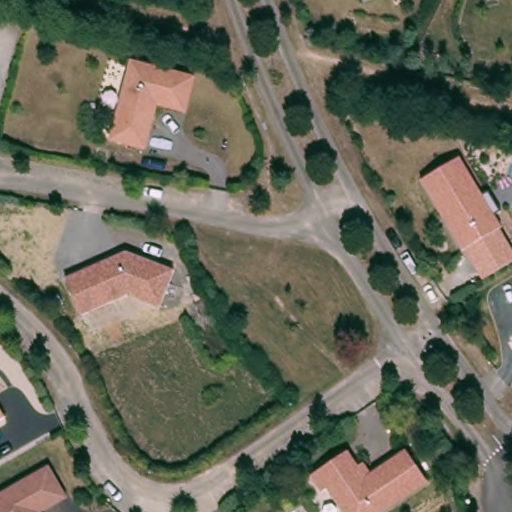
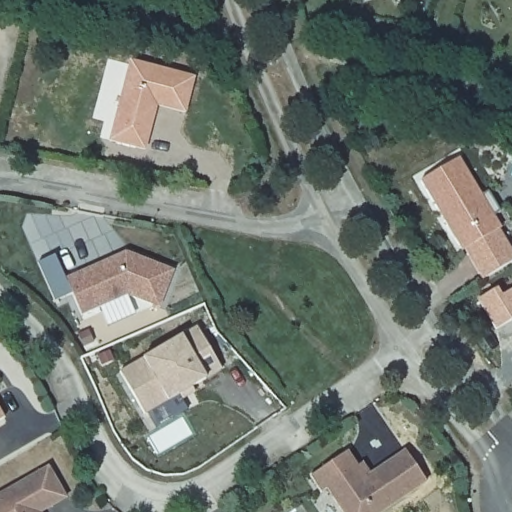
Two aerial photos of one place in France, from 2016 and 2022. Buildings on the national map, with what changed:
unchanged [(149,142),(114,134),(135,56),(197,72),(189,106),(161,98),(157,111),(155,120),(149,142)]
unchanged [(504,225),(466,247),(424,177),(462,154),(504,225)]
unchanged [(131,250),(178,268),(164,306),(132,293),(86,313),(70,277),(131,250)]
new [(181,397),(178,392),(143,412),(118,370),(196,325),(221,367),(190,385),(194,390),(181,397)]
unchanged [(0,401),(9,416),(0,420),(0,401)]
unchanged [(431,480),(382,512),(348,512),(331,487),(325,491),(314,474),(351,450),(361,465),(367,461),(375,472),(410,448),(431,480)]
unchanged [(52,465),(70,496),(56,503),(43,511),(44,512),(0,512),(0,495),(38,473),(52,465)]

